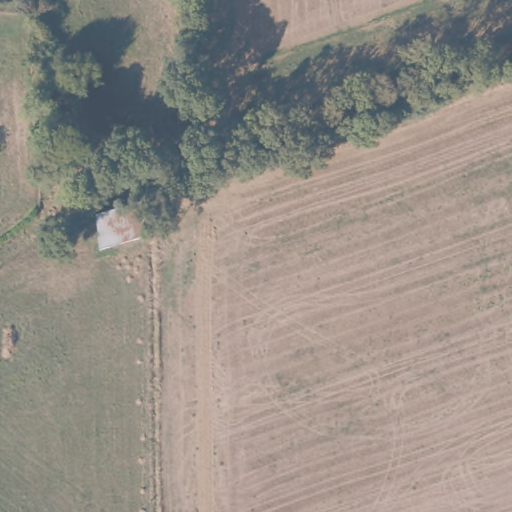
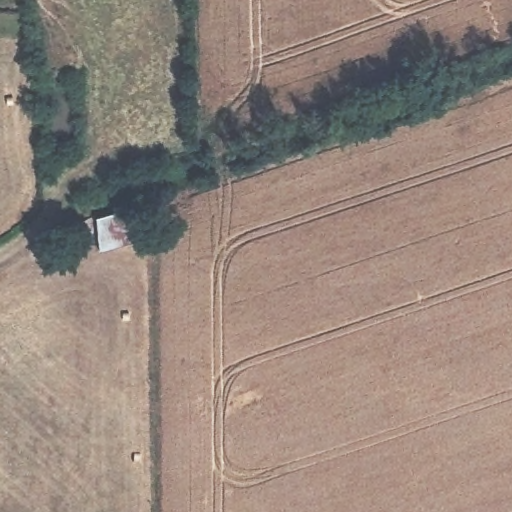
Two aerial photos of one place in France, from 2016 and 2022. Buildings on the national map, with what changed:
unchanged [(133,214),(134,243),(100,248),(94,222),(133,214)]

